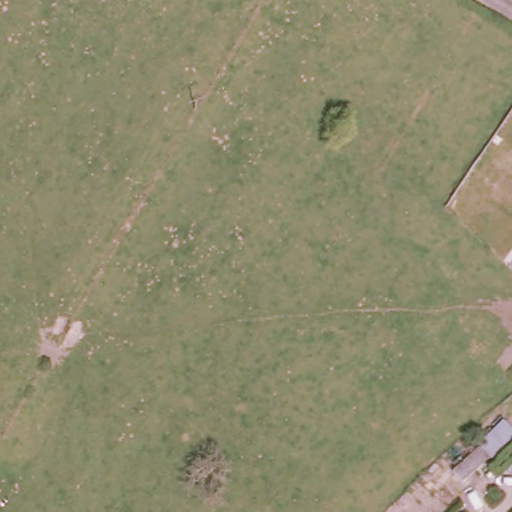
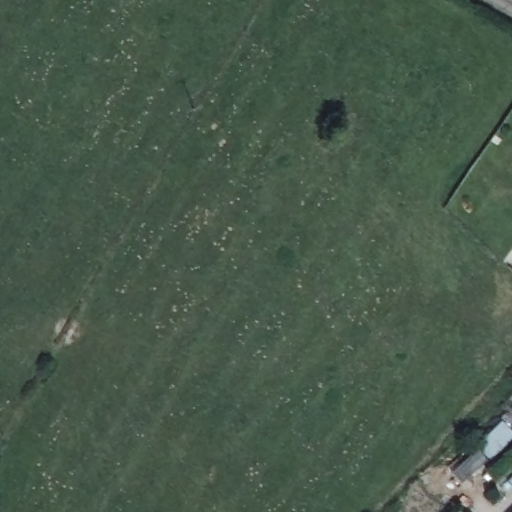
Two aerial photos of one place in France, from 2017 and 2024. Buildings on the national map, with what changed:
unchanged [(472,459),(470,456),(497,434),(508,447),(454,494),(444,483),(472,459)]

